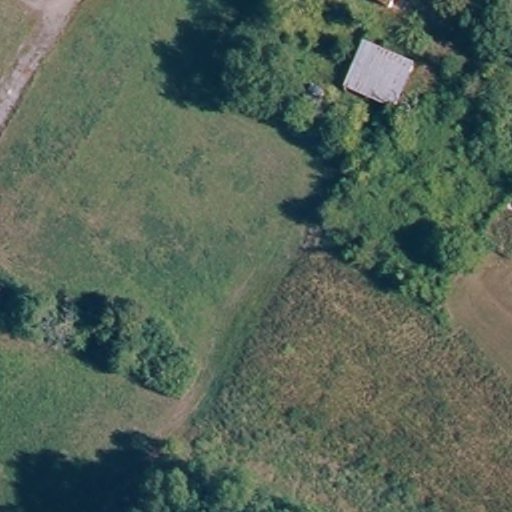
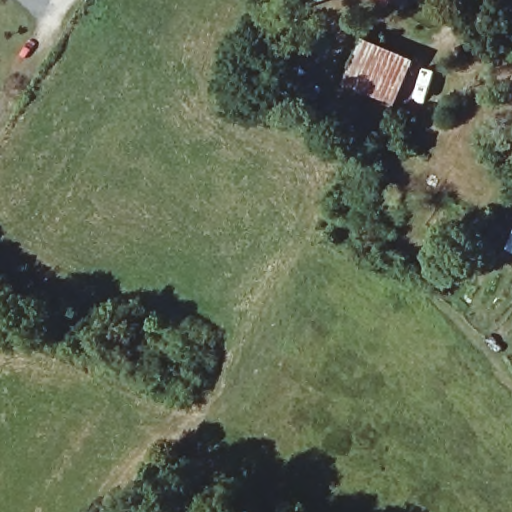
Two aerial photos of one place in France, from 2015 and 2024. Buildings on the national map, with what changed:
unchanged [(334,94),(367,24),(414,47),(382,116),(377,113),(334,94)]

